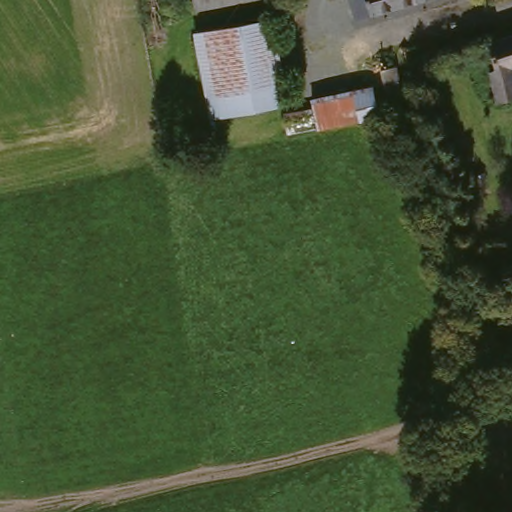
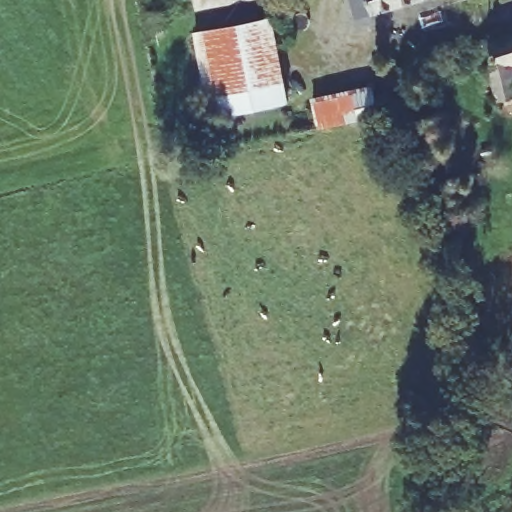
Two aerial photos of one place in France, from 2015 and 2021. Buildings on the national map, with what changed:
unchanged [(188,10),(186,0),(245,0),(188,10)]
unchanged [(371,18),(366,0),(435,0),(371,18)]
unchanged [(271,23),(285,106),(204,121),(191,37),(271,23)]
unchanged [(496,66),(489,48),(512,40),(512,74),(511,74),(512,77),(512,101),(496,104),(484,71),(496,66)]
unchanged [(385,76),(401,74),(409,115),(394,120),(385,76)]
unchanged [(384,125),(297,135),(296,130),(294,115),(322,110),(321,105),(343,101),(381,95),(384,121),(384,125)]

